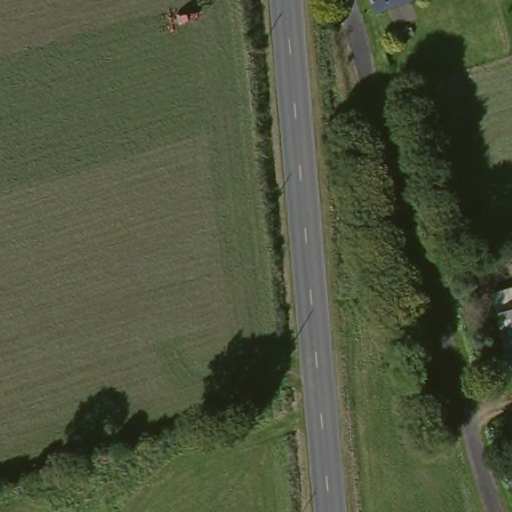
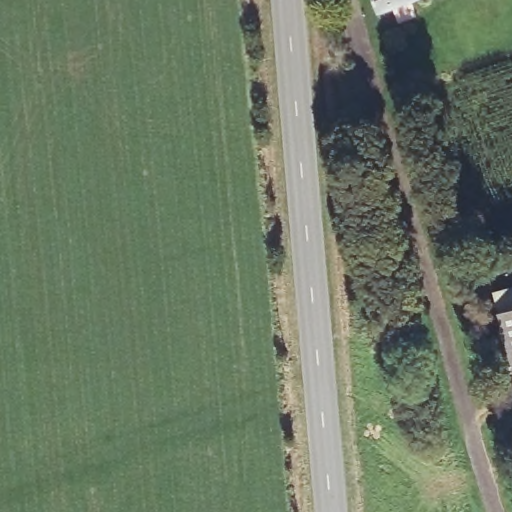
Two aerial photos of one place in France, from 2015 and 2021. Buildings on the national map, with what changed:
unchanged [(374,14),(369,0),(412,0),(374,14)]
unchanged [(498,233),(465,236),(462,212),(496,209),(498,233)]
unchanged [(486,292),(512,286),(512,385),(486,292)]

